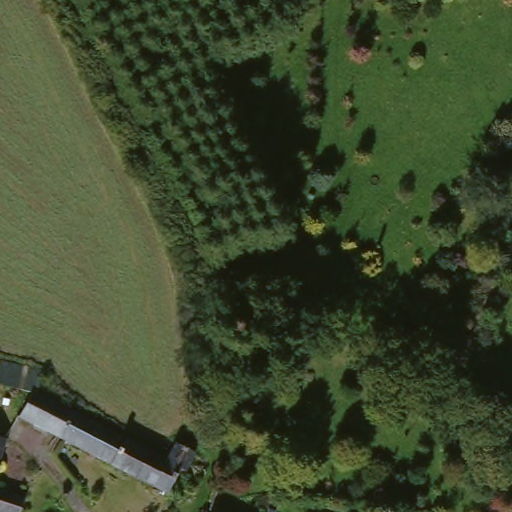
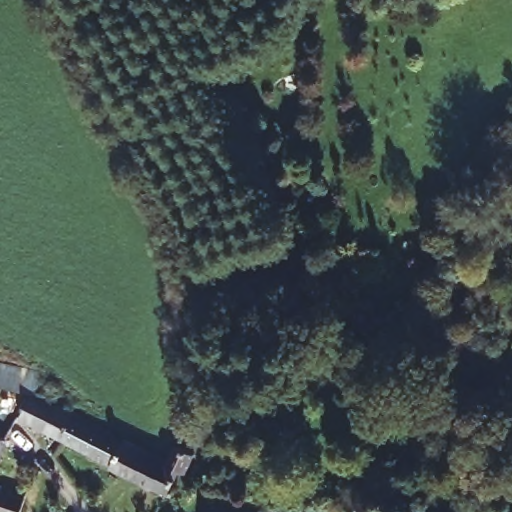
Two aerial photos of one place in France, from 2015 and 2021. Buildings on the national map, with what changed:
unchanged [(0,368),(31,375),(28,392),(27,394),(0,388),(0,368)]
unchanged [(30,399),(31,397),(75,418),(59,447),(18,426),(30,399)]
unchanged [(124,441),(109,472),(59,447),(75,418),(124,441)]
unchanged [(175,477),(162,499),(109,472),(124,441),(169,463),(175,451),(192,459),(182,479),(175,477)]
unchanged [(0,451),(0,446),(2,447),(0,451)]
unchanged [(18,512),(0,512),(0,496),(21,503),(18,512)]

